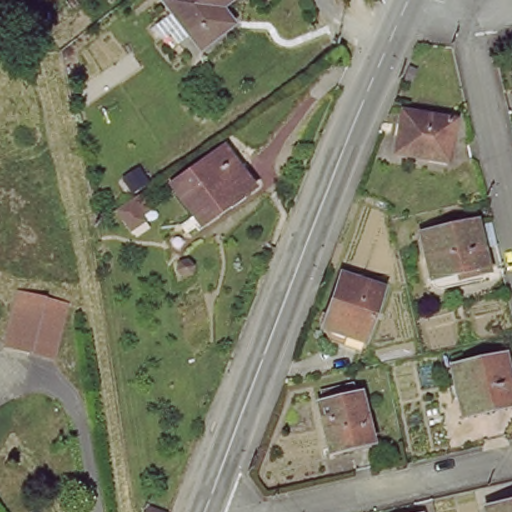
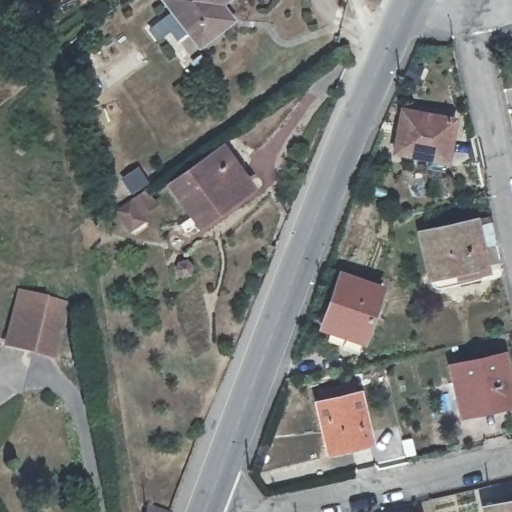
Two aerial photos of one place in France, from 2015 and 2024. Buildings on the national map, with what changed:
unchanged [(225,18),(197,38),(171,0),(216,0),(214,2),(225,18)]
unchanged [(402,149),(413,111),(457,122),(450,159),(402,149)]
unchanged [(170,180),(221,147),(248,188),(196,220),(170,180)]
unchanged [(128,233),(115,214),(140,194),(152,215),(128,233)]
unchanged [(455,281),(455,274),(428,278),(422,226),(472,220),(482,276),(455,281)]
unchanged [(322,335),(320,315),(337,276),(380,290),(358,348),(322,335)]
unchanged [(68,315),(53,366),(7,352),(22,301),(68,315)]
unchanged [(465,419),(452,365),(502,355),(512,405),(465,419)]
unchanged [(328,455),(314,395),(348,390),(350,400),(360,398),(370,447),(328,455)]
unchanged [(480,505),(512,497),(512,512),(482,512),(480,505)]

